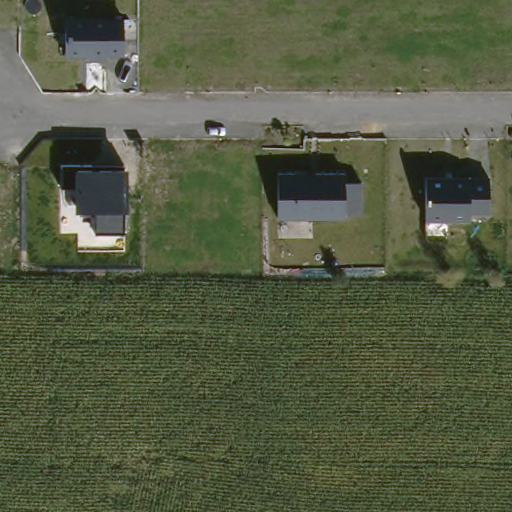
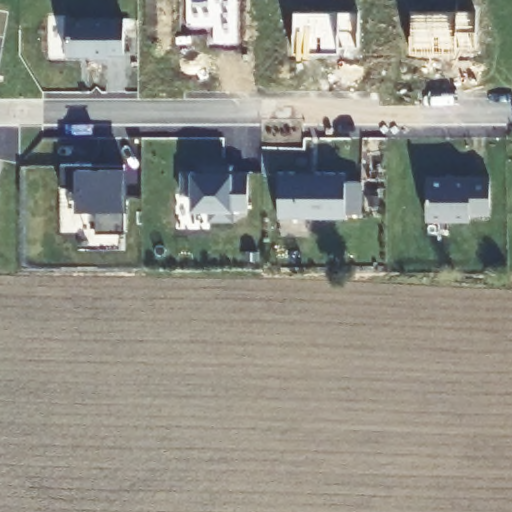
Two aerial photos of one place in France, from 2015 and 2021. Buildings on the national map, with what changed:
unchanged [(123,54),(67,56),(66,19),(124,18),(123,54)]
unchanged [(126,208),(125,232),(97,231),(98,208),(78,208),(77,184),(61,185),(61,164),(128,162),(128,167),(126,208)]
new [(190,194),(181,194),(181,171),(190,171),(190,163),(234,163),(234,172),(248,172),(248,210),(234,210),(233,222),(210,222),(210,211),(190,211),(190,194)]
unchanged [(363,210),(344,210),(344,216),(277,216),(275,176),(345,173),(345,181),(362,181),(363,210)]
unchanged [(491,211),(472,212),(471,219),(425,220),(424,178),(491,175),(491,211)]

